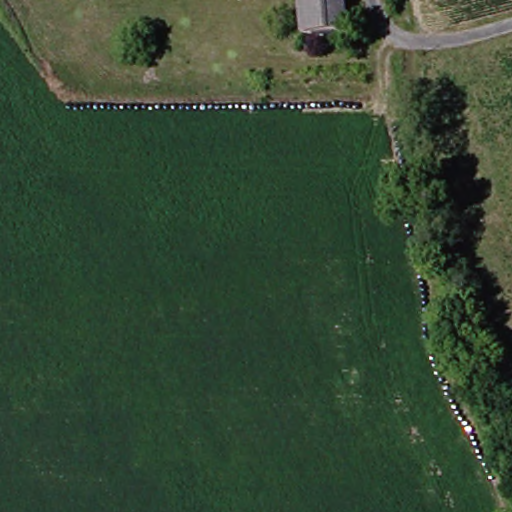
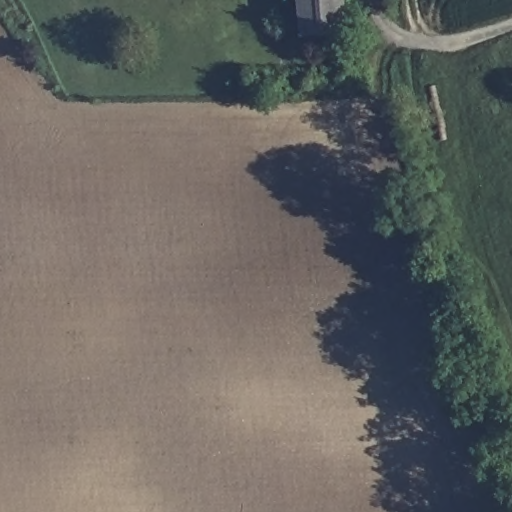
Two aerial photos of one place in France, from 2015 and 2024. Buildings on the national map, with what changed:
unchanged [(309,30),(309,0),(353,0),(353,30),(309,30)]

